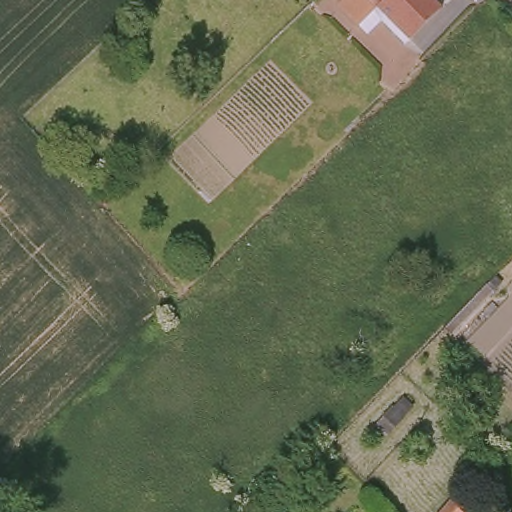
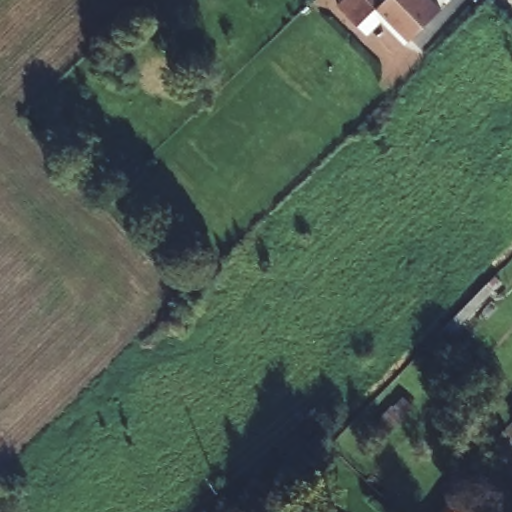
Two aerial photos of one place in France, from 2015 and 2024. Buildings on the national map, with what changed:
unchanged [(440,9),(407,37),(377,4),(356,22),(337,3),(341,0),(431,0),(440,9)]
unchanged [(447,512),(457,501),(470,512),(447,512)]

